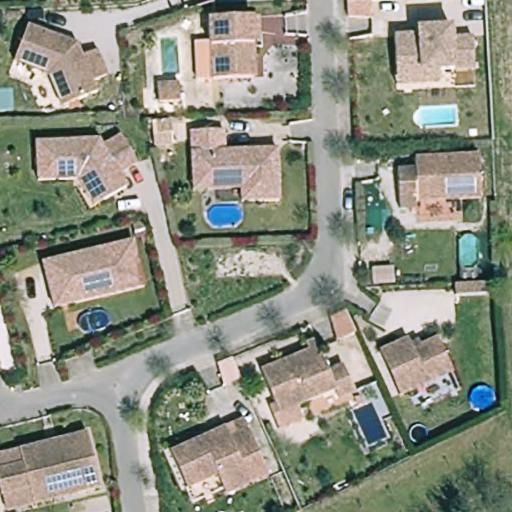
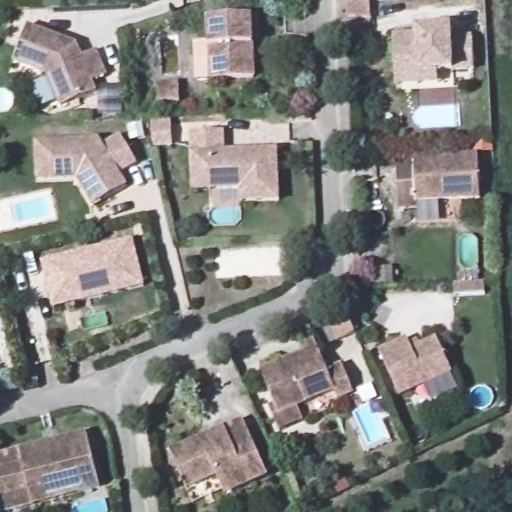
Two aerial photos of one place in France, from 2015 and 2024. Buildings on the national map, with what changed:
unchanged [(199,40),(206,40),(206,16),(256,15),(256,31),(256,40),(250,40),(250,75),(206,76),(206,61),(199,61),(199,40)]
unchanged [(76,45),(82,55),(96,47),(107,66),(95,75),(100,85),(67,104),(50,74),(12,56),(29,22),(76,45)]
unchanged [(395,85),(395,70),(394,34),(426,32),(426,26),(451,25),(451,36),(472,36),(473,68),(438,69),(438,84),(395,85)]
unchanged [(179,87),(180,105),(157,105),(157,88),(179,87)]
unchanged [(75,175),(30,176),(28,139),(91,136),(96,141),(112,127),(133,150),(118,165),(129,175),(110,194),(101,201),(75,175)]
unchanged [(240,185),(192,186),(192,178),(192,128),(225,127),(225,148),(275,147),(276,197),(246,198),(240,199),(240,185)]
unchanged [(478,195),(415,198),(415,205),(397,206),(395,167),(413,166),(413,155),(476,152),(478,195)]
unchanged [(47,279),(42,257),(132,236),(143,281),(73,298),(53,303),(47,279)]
unchanged [(335,317),(346,340),(331,346),(320,323),(335,317)]
unchanged [(406,339),(414,335),(416,341),(433,333),(449,367),(396,391),(375,347),(403,334),(406,339)]
unchanged [(300,343),(309,339),(312,345),(322,369),(337,362),(350,390),(334,397),(330,388),(275,413),(256,370),(303,349),(300,343)]
unchanged [(244,419),(269,475),(226,494),(217,475),(187,488),(170,450),(244,419)]
unchanged [(31,486),(3,493),(0,479),(0,455),(2,454),(22,449),(22,447),(82,432),(95,487),(70,493),(34,501),(31,486)]

